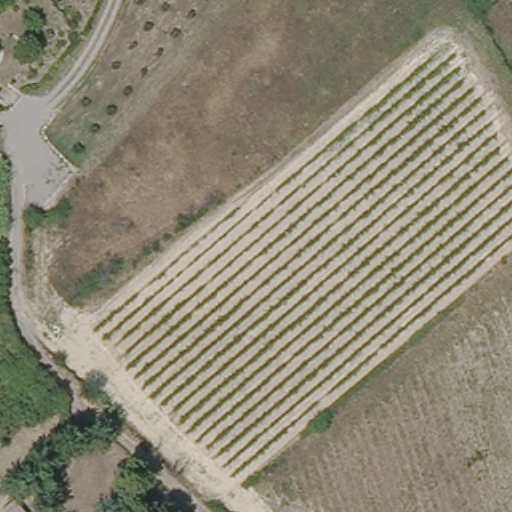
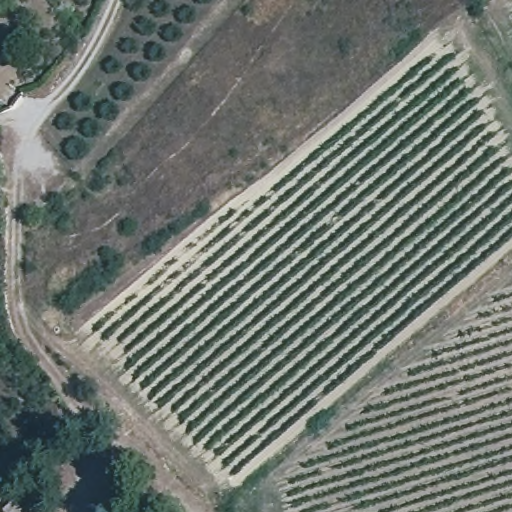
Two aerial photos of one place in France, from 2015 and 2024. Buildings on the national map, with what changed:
unchanged [(24,512),(0,512),(0,507),(11,497),(24,512)]

